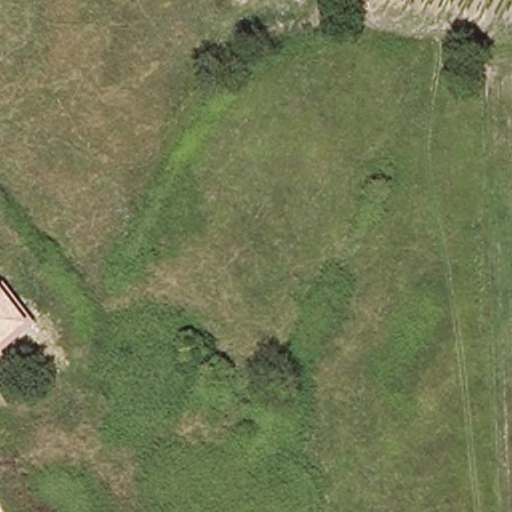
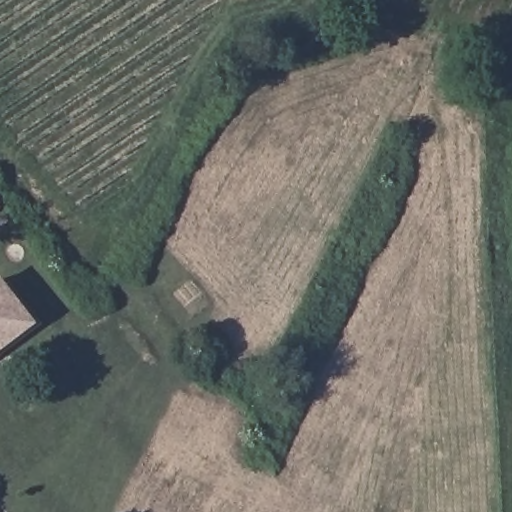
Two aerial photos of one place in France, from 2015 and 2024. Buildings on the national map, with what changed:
unchanged [(2,285),(6,282),(38,326),(0,354),(0,281),(2,285)]

